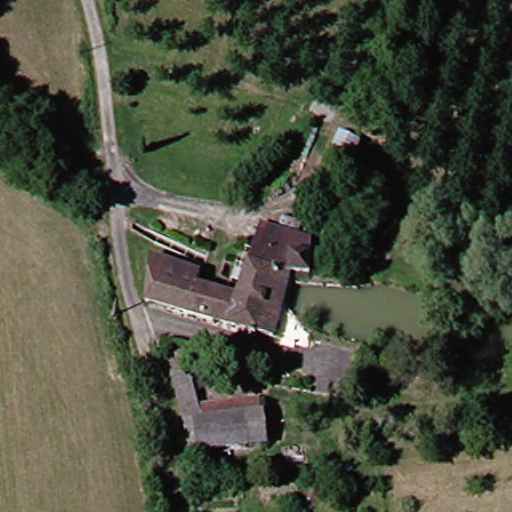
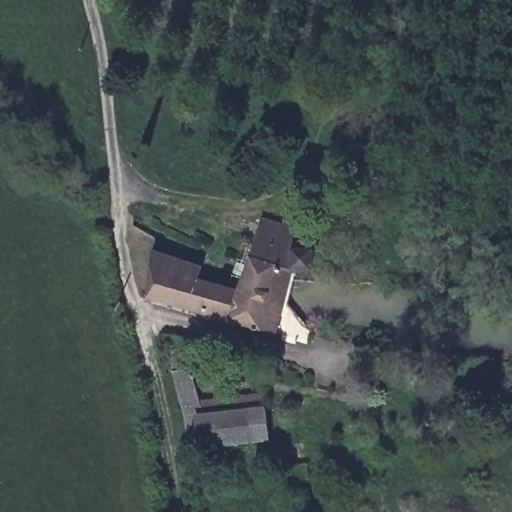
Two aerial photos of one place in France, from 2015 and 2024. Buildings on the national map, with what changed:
unchanged [(315,274),(296,269),(288,267),(254,259),(263,227),(316,239),(312,251),(320,253),(315,274)]
unchanged [(268,332),(153,299),(157,256),(206,270),(204,282),(243,294),(254,259),(288,267),(268,332)]
unchanged [(190,450),(174,374),(196,371),(202,403),(208,401),(212,416),(268,410),(271,443),(200,450),(190,450)]

